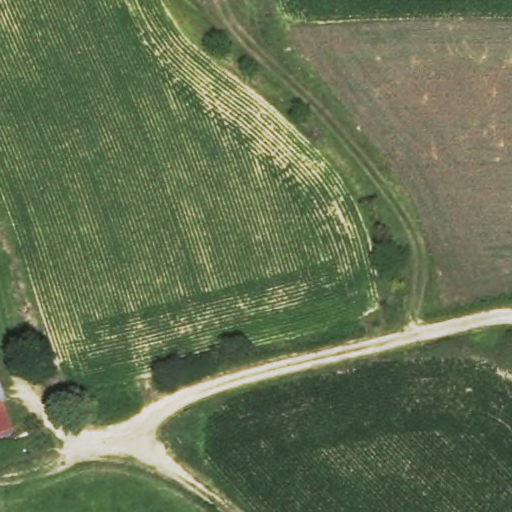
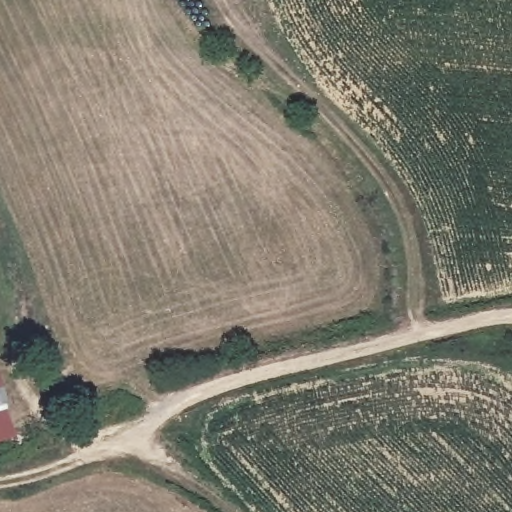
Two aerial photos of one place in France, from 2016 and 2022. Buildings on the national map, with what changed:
unchanged [(18,438),(0,443),(0,385),(18,438)]

